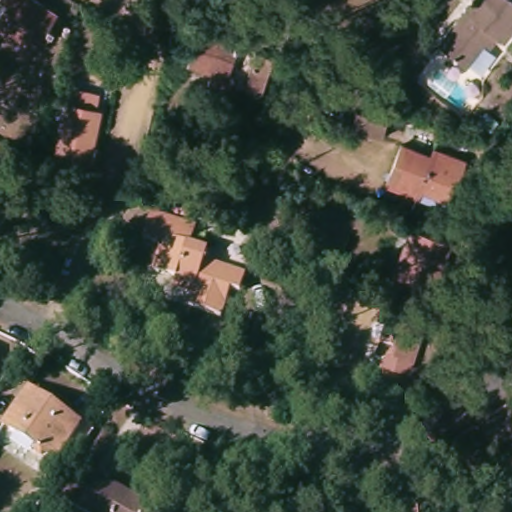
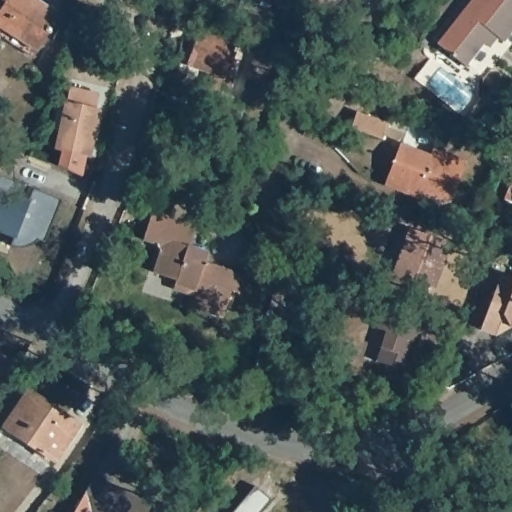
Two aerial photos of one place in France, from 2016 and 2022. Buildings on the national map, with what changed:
unchanged [(3,0),(35,0),(55,13),(46,24),(55,30),(39,54),(0,28),(0,6),(4,1),(3,0)]
unchanged [(463,65),(434,41),(468,0),(511,0),(512,1),(512,26),(501,41),(495,36),(487,46),(482,43),(463,65)]
unchanged [(230,28),(227,38),(236,41),(226,71),(232,73),(227,86),(206,79),(210,68),(185,60),(200,17),(230,28)]
unchanged [(270,64),(259,96),(243,91),(255,58),(270,64)]
unchanged [(54,149),(65,102),(69,86),(97,93),(94,109),(83,155),(54,149)]
unchanged [(390,123),(385,138),(353,126),(358,111),(390,123)]
unchanged [(431,150),(418,183),(416,190),(386,178),(401,139),(431,150)]
unchanged [(433,144),(462,154),(447,194),(418,183),(431,150),(433,144)]
new [(2,176),(8,179),(22,184),(17,197),(25,200),(30,187),(59,199),(42,242),(35,239),(29,244),(22,246),(14,247),(7,245),(11,235),(0,231),(0,175),(2,176)]
unchanged [(512,189),(512,201),(507,199),(512,189)]
unchanged [(174,282),(175,279),(152,271),(159,251),(156,244),(142,239),(150,213),(195,228),(189,246),(207,252),(204,261),(244,275),(239,293),(229,289),(220,317),(187,306),(191,295),(172,288),(174,282)]
unchanged [(484,218),(485,238),(462,230),(467,213),(484,218)]
unchanged [(442,237),(427,279),(390,266),(406,224),(442,237)]
new [(512,277),(512,324),(493,334),(478,329),(500,272),(512,277)]
unchanged [(373,322),(380,304),(423,318),(407,366),(376,355),(385,326),(373,322)]
unchanged [(78,424),(57,459),(4,425),(17,404),(26,390),(78,424)]
unchanged [(512,461),(512,483),(508,483),(510,461),(512,461)]
unchanged [(144,500),(137,512),(86,512),(82,510),(100,476),(144,500)]
new [(255,483),(271,496),(257,512),(230,512),(255,483)]

